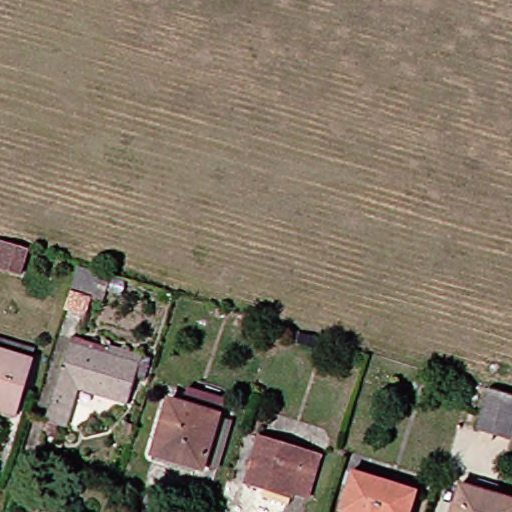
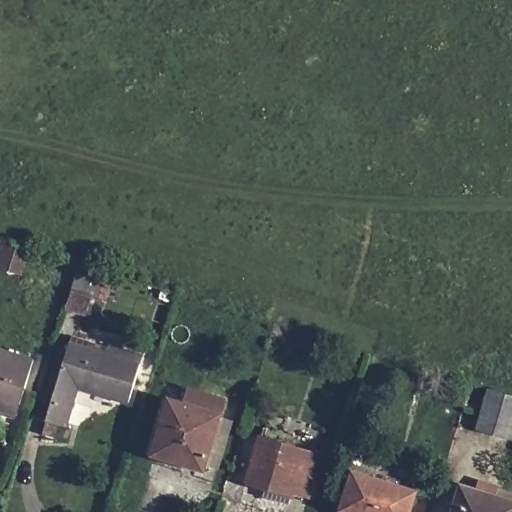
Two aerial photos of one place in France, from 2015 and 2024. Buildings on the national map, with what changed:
unchanged [(0,270),(0,243),(35,254),(27,278),(0,270)]
unchanged [(101,269),(111,272),(103,295),(99,294),(94,309),(74,303),(85,264),(101,269)]
unchanged [(317,349),(310,347),(297,343),(300,330),(321,337),(317,349)]
unchanged [(144,363),(132,404),(83,389),(72,427),(52,421),(75,343),(144,363)]
unchanged [(26,416),(0,408),(0,348),(43,361),(26,416)]
unchanged [(213,464),(163,449),(179,395),(193,399),(197,384),(234,396),(213,464)]
unchanged [(496,389),(512,393),(512,437),(484,429),(496,389)]
unchanged [(268,497),(270,488),(252,482),(265,438),(326,456),(314,496),(297,491),(293,504),(268,497)]
unchanged [(427,491),(420,512),(358,512),(350,509),(362,471),(427,491)]
unchanged [(466,484),(512,498),(512,512),(457,512),(466,484)]

